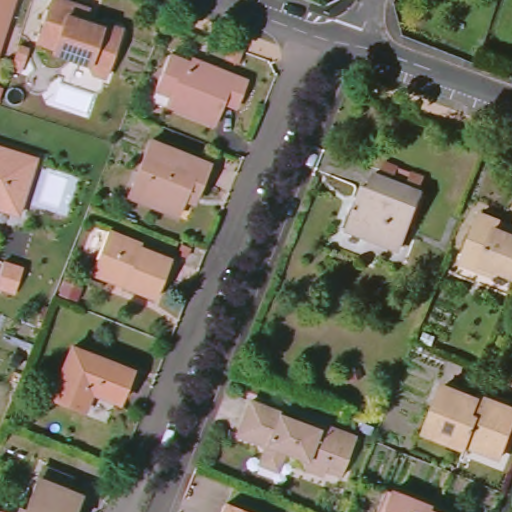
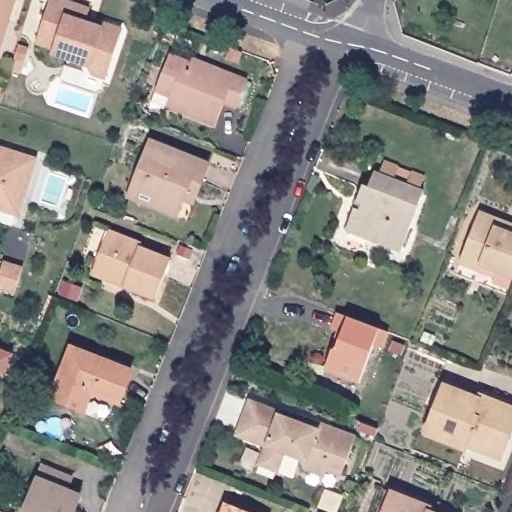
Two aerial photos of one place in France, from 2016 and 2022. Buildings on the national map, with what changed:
unchanged [(0,41),(0,0),(12,0),(0,41)]
unchanged [(88,14),(122,26),(120,33),(105,76),(93,72),(88,63),(53,51),(55,47),(37,40),(51,0),(67,0),(90,8),(88,14)]
unchanged [(168,102),(171,93),(156,88),(170,53),(201,64),(203,60),(248,77),(237,104),(225,99),(216,121),(168,102)]
unchanged [(140,169),(153,138),(209,160),(197,191),(188,188),(178,211),(138,195),(130,192),(140,169)]
unchanged [(35,158),(17,216),(0,210),(0,148),(35,158)]
unchanged [(370,232),(367,236),(348,228),(366,183),(370,185),(376,170),(426,190),(404,245),(370,232)]
unchanged [(482,268),(464,261),(483,213),(512,224),(512,274),(484,263),(482,268)]
unchanged [(96,264),(110,230),(142,242),(140,247),(170,258),(156,295),(123,283),(93,271),(96,264)]
unchanged [(22,270),(14,293),(0,289),(0,267),(2,263),(22,270)]
new [(345,316),(384,333),(362,389),(325,374),(345,316)]
unchanged [(57,397),(77,347),(135,370),(123,402),(94,390),(87,409),(57,397)]
unchanged [(462,449),(423,434),(441,385),(476,399),(479,391),(507,401),(504,408),(512,411),(512,421),(498,457),(464,444),(462,449)]
unchanged [(323,473),(305,465),(300,455),(285,449),(281,458),(277,467),(260,460),(265,451),(269,441),(240,430),(254,397),(283,409),(282,412),(303,420),(305,414),(324,422),(358,435),(344,467),(341,474),(326,468),(323,473)]
unchanged [(28,510),(41,477),(82,494),(75,512),(22,512),(24,509),(28,510)]
unchanged [(431,509),(430,512),(384,512),(391,493),(431,509)]
unchanged [(253,512),(225,512),(229,502),(253,512)]

